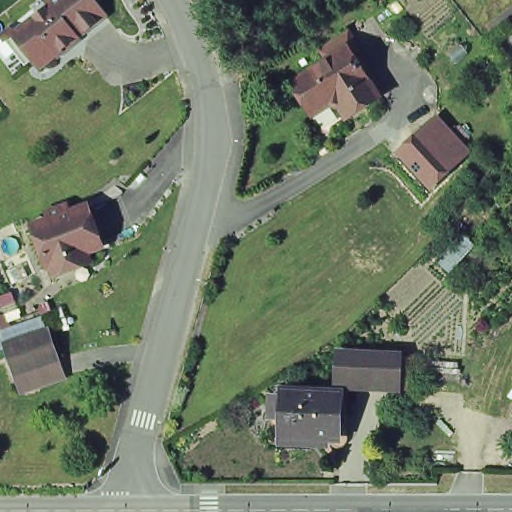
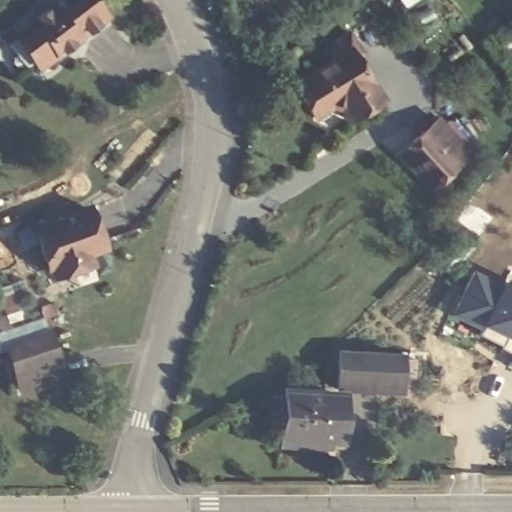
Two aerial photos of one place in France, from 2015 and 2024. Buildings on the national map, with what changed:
unchanged [(18,34),(55,5),(52,1),(52,0),(97,0),(109,15),(80,37),(84,40),(63,56),(62,54),(43,67),(37,59),(29,65),(7,36),(15,30),(18,34)]
unchanged [(329,100),(321,97),(310,102),(296,67),(355,44),(375,97),(334,113),(329,100)]
unchanged [(395,152),(437,113),(470,153),(432,188),(395,152)]
unchanged [(44,265),(41,266),(27,226),(43,220),(40,214),(60,207),(62,212),(79,207),(94,247),(80,252),(82,262),(47,275),(44,265)]
new [(506,277),(512,281),(512,339),(487,326),(484,333),(450,316),(475,270),(505,282),(506,277)]
unchanged [(3,349),(0,350),(0,327),(40,312),(67,377),(19,396),(3,349)]
unchanged [(402,378),(344,376),(345,347),(402,350),(402,378)]
unchanged [(275,418),(275,396),(290,397),(290,392),(342,394),(340,445),(288,443),(289,419),(275,418)]

